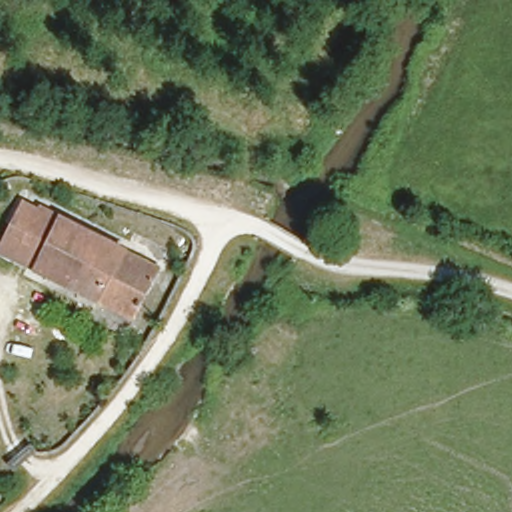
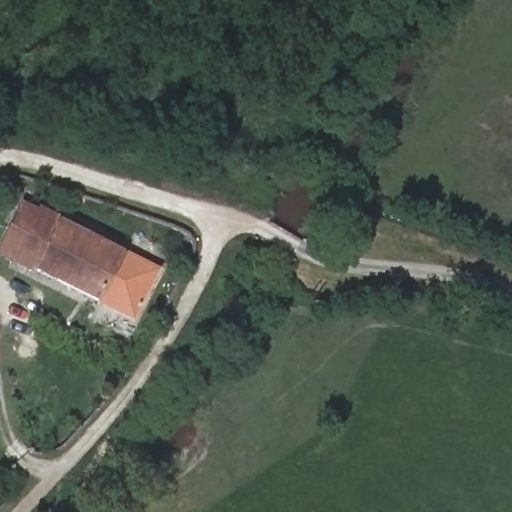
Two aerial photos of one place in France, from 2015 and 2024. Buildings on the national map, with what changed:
unchanged [(167,263),(140,315),(0,255),(17,211),(21,200),(167,263)]

